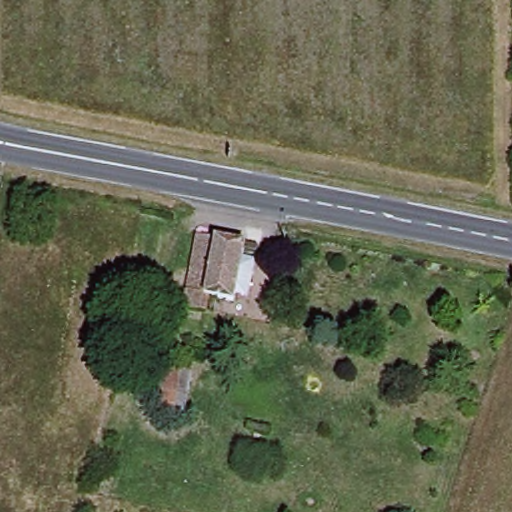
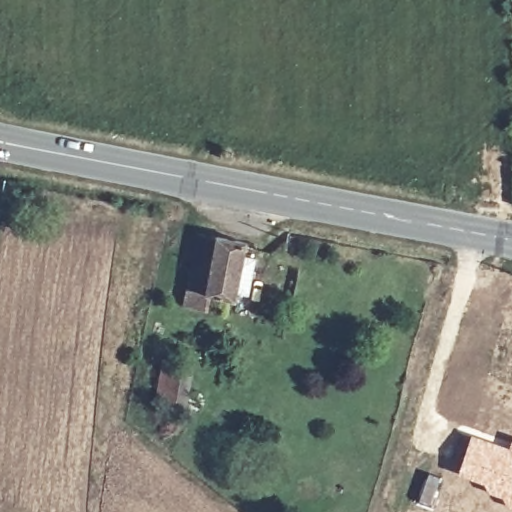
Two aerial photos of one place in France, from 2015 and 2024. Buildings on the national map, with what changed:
unchanged [(239,245),(236,260),(249,262),(244,300),(227,297),(226,305),(214,303),(195,300),(192,313),(176,310),(190,236),(239,245)]
unchanged [(164,403),(154,402),(163,357),(196,364),(181,423),(164,418),(164,403)]
new [(507,446),(511,435),(512,436),(512,505),(503,501),(483,486),(456,471),(470,433),(507,446)]

